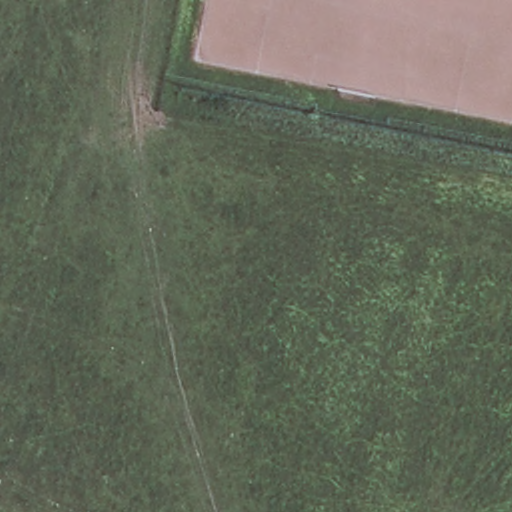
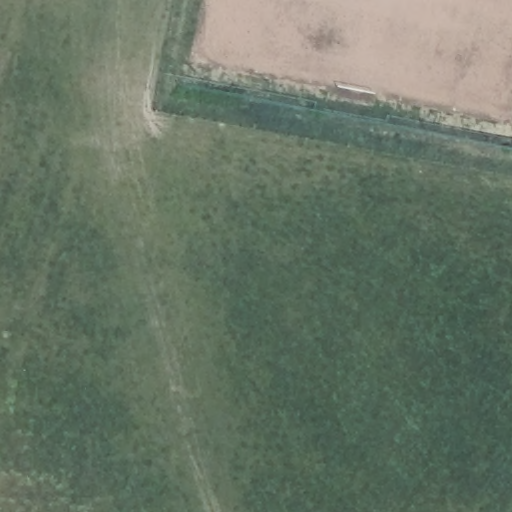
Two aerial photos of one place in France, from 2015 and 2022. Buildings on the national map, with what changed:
[]

